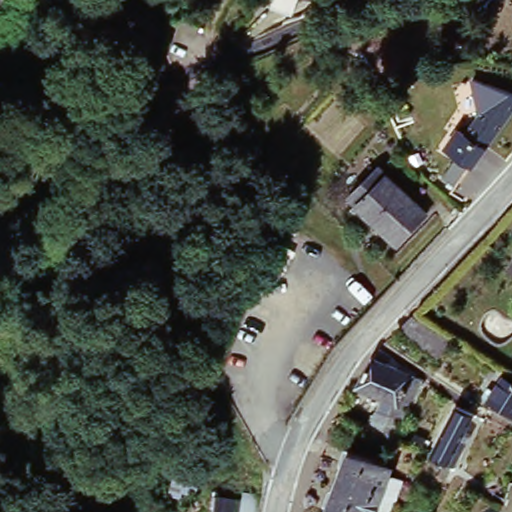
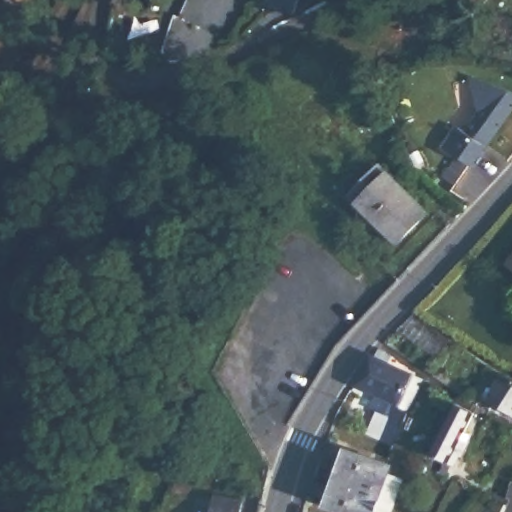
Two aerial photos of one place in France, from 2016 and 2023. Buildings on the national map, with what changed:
unchanged [(206,83),(201,109),(174,104),(179,78),(206,83)]
unchanged [(463,128),(471,133),(486,113),(478,79),(512,92),(512,119),(477,165),(475,164),(460,184),(448,176),(463,155),(450,146),(463,128)]
unchanged [(387,168),(434,215),(403,248),(354,199),(387,168)]
unchanged [(429,344),(445,354),(436,368),(396,340),(410,325),(432,339),(429,344)]
unchanged [(420,376),(410,397),(413,410),(393,444),(362,429),(379,399),(353,385),(373,352),(420,376)]
unchanged [(485,396),(501,369),(512,377),(512,414),(485,396)]
unchanged [(433,456),(460,403),(476,412),(457,451),(454,450),(450,457),(456,460),(453,467),(433,456)]
unchanged [(320,503),(327,482),(330,473),(339,444),(385,459),(382,467),(369,497),(364,512),(349,512),(320,503)]
unchanged [(173,476),(196,482),(195,488),(189,487),(187,489),(180,488),(178,494),(167,492),(173,476)]
unchanged [(393,492),(386,512),(382,512),(369,508),(377,485),(393,492)]
unchanged [(251,512),(208,512),(209,502),(229,504),(230,506),(233,506),(235,494),(241,494),(253,497),(251,512)]

